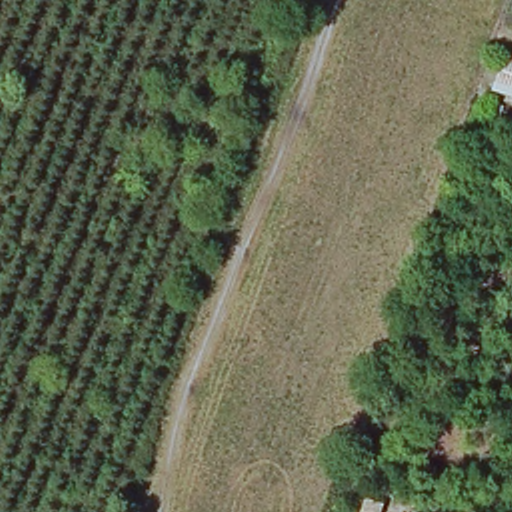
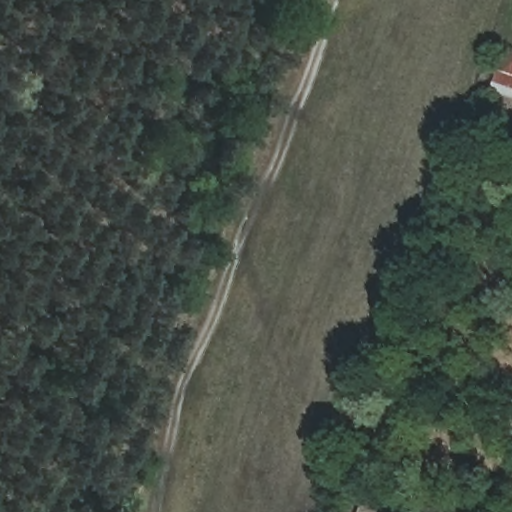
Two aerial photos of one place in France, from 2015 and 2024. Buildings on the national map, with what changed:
unchanged [(494,97),(508,53),(512,54),(512,102),(494,97)]
unchanged [(386,504),(383,512),(360,512),(365,498),(386,504)]

